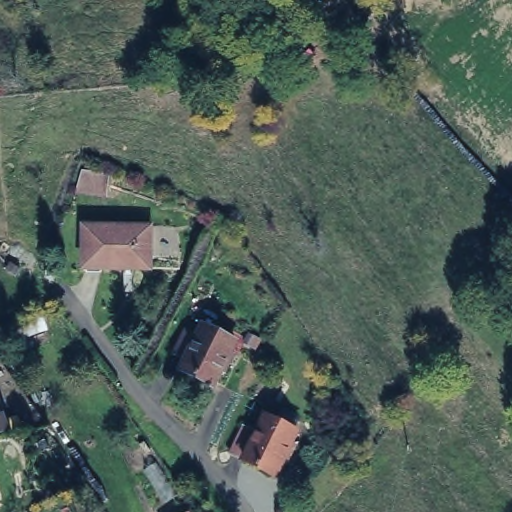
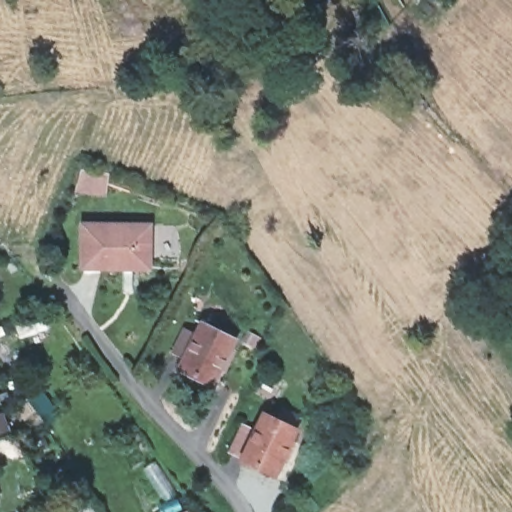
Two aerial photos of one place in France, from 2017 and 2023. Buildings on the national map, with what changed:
unchanged [(124,162),(116,178),(90,165),(96,150),(124,162)]
unchanged [(150,211),(148,252),(81,246),(85,205),(150,211)]
unchanged [(244,331),(240,339),(243,341),(234,358),(230,356),(223,370),(193,354),(199,343),(185,335),(197,311),(211,318),(213,315),(244,331)]
unchanged [(298,421),(296,425),(299,430),(289,450),(285,448),(279,464),(249,449),(232,440),(246,411),(262,420),(268,406),(298,421)]
unchanged [(191,510),(191,512),(187,512),(191,510)]

